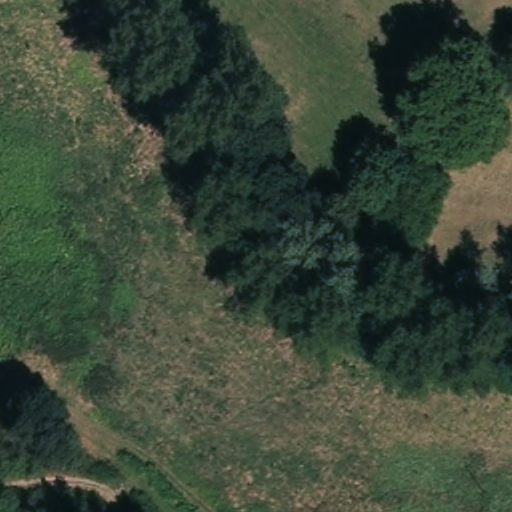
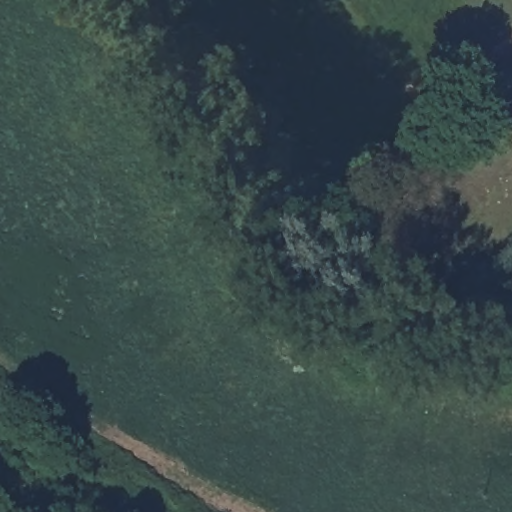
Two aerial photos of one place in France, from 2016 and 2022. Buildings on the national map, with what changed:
[]

